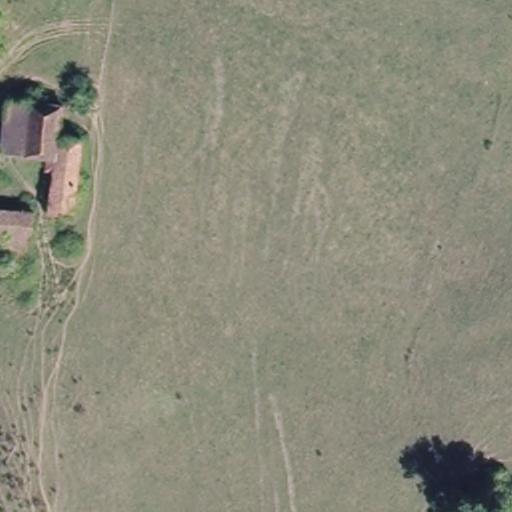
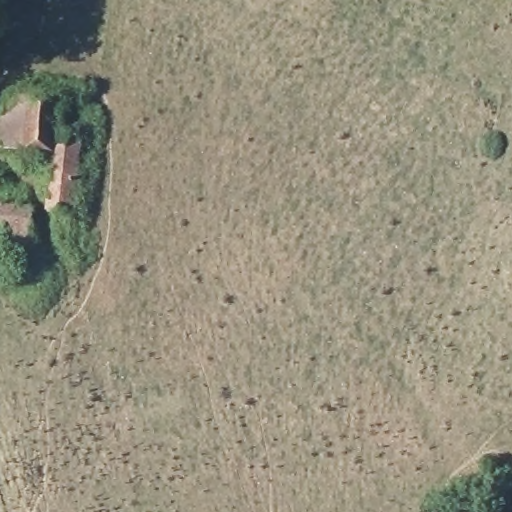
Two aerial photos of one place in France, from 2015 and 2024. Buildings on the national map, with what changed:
unchanged [(61,107),(58,133),(84,136),(73,212),(46,205),(54,156),(0,150),(0,132),(6,99),(61,107)]
unchanged [(32,205),(32,252),(7,254),(5,229),(0,229),(0,204),(32,205)]

